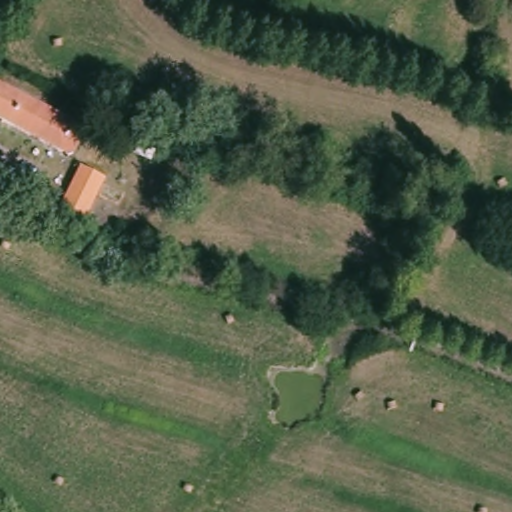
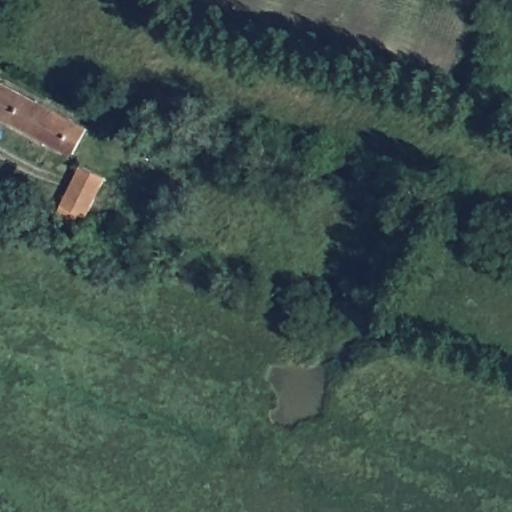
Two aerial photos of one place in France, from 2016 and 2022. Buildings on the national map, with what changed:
unchanged [(69,155),(0,119),(0,85),(84,129),(69,155)]
unchanged [(104,184),(85,223),(78,219),(74,228),(56,219),(80,172),(104,184)]
unchanged [(136,219),(129,232),(109,220),(115,207),(136,219)]

